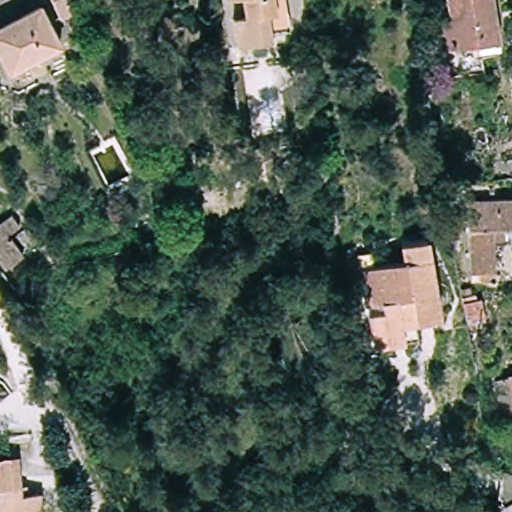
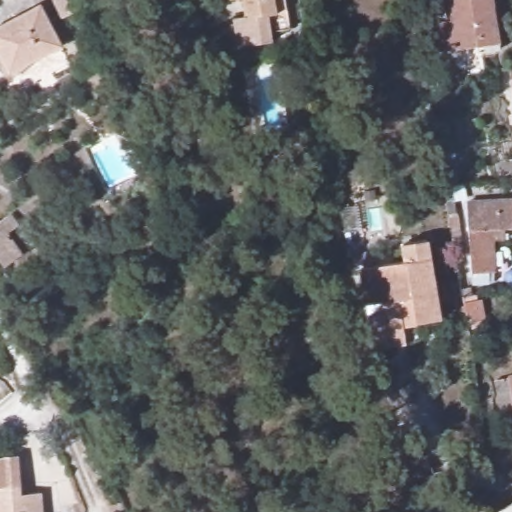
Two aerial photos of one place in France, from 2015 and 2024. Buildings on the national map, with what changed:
unchanged [(273,30),(274,39),(238,45),(233,19),(246,16),(245,8),(244,0),(286,0),(291,28),(273,30)]
unchanged [(445,19),(442,0),(490,0),(497,42),(497,48),(470,51),(469,46),(436,50),(432,21),(445,19)]
unchanged [(0,26),(41,5),(63,48),(7,77),(0,63),(0,26)]
unchanged [(512,69),(512,117),(506,69),(512,69)]
unchanged [(461,166),(466,185),(442,192),(439,171),(461,166)]
unchanged [(475,204),(512,202),(512,229),(500,229),(504,273),(481,275),(475,204)]
unchanged [(0,222),(11,214),(19,225),(8,233),(22,253),(3,267),(0,263),(0,222)]
unchanged [(425,245),(434,322),(403,326),(405,340),(369,345),(366,315),(379,312),(378,305),(364,304),(359,269),(403,260),(402,249),(425,245)]
unchanged [(13,389),(0,399),(0,347),(3,359),(13,389)]
unchanged [(512,381),(512,421),(502,423),(494,384),(512,381)]
unchanged [(0,454),(16,453),(19,492),(39,490),(41,512),(0,512),(0,470),(1,469),(0,454)]

